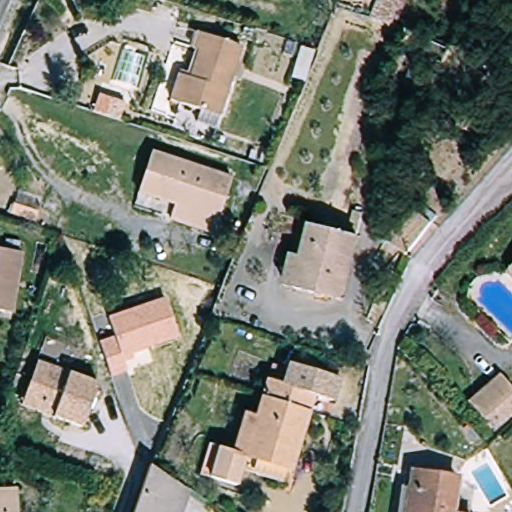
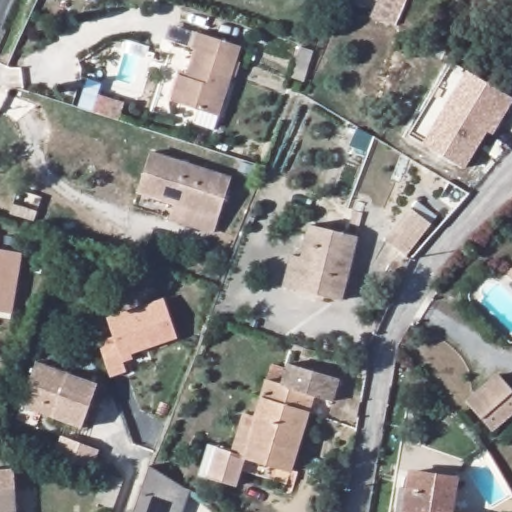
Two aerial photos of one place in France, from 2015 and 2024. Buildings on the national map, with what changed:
unchanged [(374,19),(382,0),(406,0),(396,25),(374,19)]
unchanged [(181,77),(190,80),(198,54),(193,52),(198,35),(246,50),(225,117),(182,105),(174,102),(181,77)]
new [(512,98),(512,104),(493,135),(488,132),(466,168),(423,143),(409,135),(453,61),(468,71),(512,98)]
new [(85,82),(100,87),(98,95),(123,104),(118,120),(78,106),(85,82)]
unchanged [(172,223),(176,210),(141,200),(156,156),(231,179),(218,222),(214,236),(172,223)]
unchanged [(382,254),(408,213),(420,221),(433,229),(407,270),(403,267),(382,254)]
unchanged [(342,305),(290,294),(305,232),(356,242),(342,305)]
unchanged [(18,258),(5,318),(0,317),(0,254),(18,258)]
unchanged [(512,270),(512,278),(508,274),(512,270)]
unchanged [(99,342),(114,337),(108,317),(166,298),(180,339),(131,353),(133,357),(124,361),(128,373),(111,378),(99,342)]
unchanged [(24,400),(37,362),(99,383),(84,427),(54,417),(22,406),(24,400)]
unchanged [(271,392),(279,370),(294,376),(344,394),(335,416),(317,409),(315,415),(268,401),(271,392)]
unchanged [(512,391),(512,411),(491,429),(466,399),(496,372),(512,391)]
unchanged [(272,447),(277,426),(260,420),(268,401),(315,415),(300,455),(272,447)]
unchanged [(212,450),(220,452),(232,457),(245,424),(257,429),(260,420),(277,426),(272,447),(300,455),(291,478),(246,462),(234,493),(207,483),(199,481),(212,450)]
new [(60,435),(98,448),(91,468),(53,455),(60,435)]
unchanged [(152,466),(187,486),(177,512),(135,512),(152,466)]
unchanged [(409,488),(411,471),(449,475),(445,510),(460,512),(398,512),(401,487),(409,488)]
unchanged [(10,492),(12,512),(0,512),(0,493),(10,492)]

